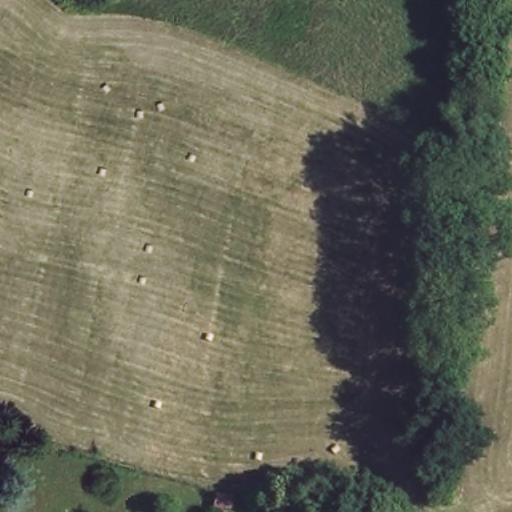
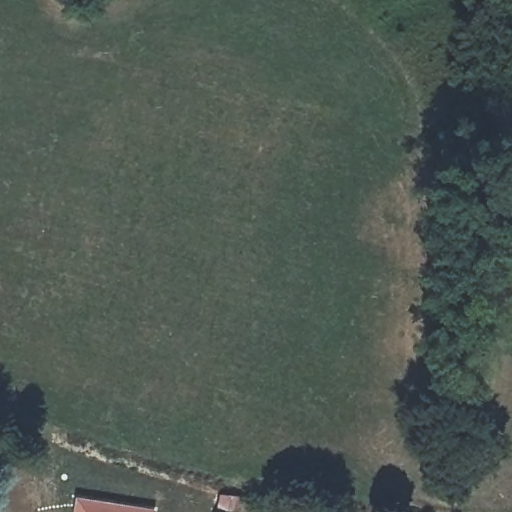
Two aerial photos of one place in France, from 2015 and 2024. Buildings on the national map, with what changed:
new [(75,494),(158,508),(157,512),(72,512),(75,494)]

